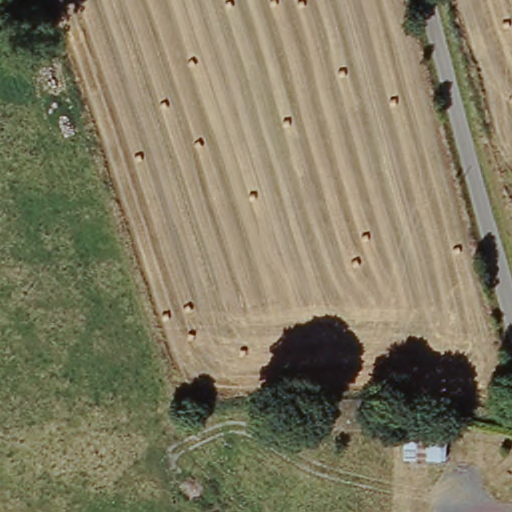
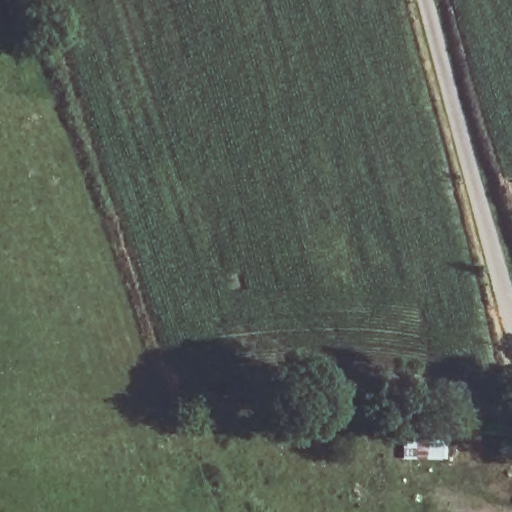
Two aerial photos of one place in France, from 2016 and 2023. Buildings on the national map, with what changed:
unchanged [(464,460),(416,459),(389,459),(390,431),(423,434),(426,423),(463,425),(465,426),(464,460)]

